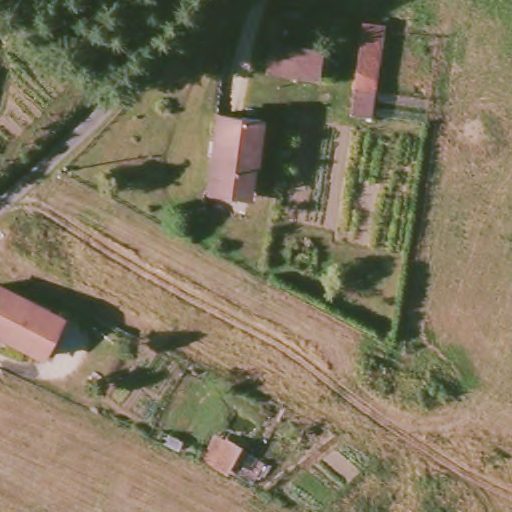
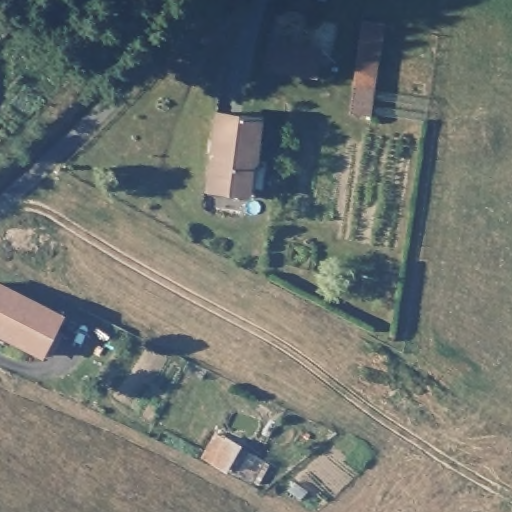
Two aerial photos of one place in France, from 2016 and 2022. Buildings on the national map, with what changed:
unchanged [(359,26),(376,28),(368,111),(351,109),(359,26)]
unchanged [(268,44),(315,49),(314,73),(266,68),(268,44)]
unchanged [(215,113),(259,118),(256,155),(253,161),(249,195),(207,191),(215,113)]
unchanged [(62,316),(39,358),(8,342),(0,337),(0,287),(2,284),(62,316)]
unchanged [(221,444),(224,439),(242,451),(221,481),(196,463),(210,438),(221,444)]

